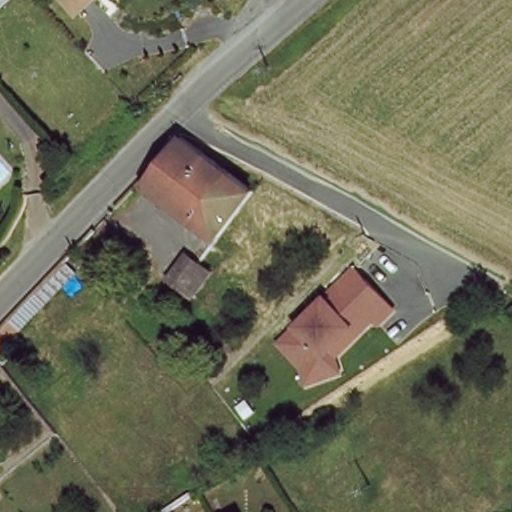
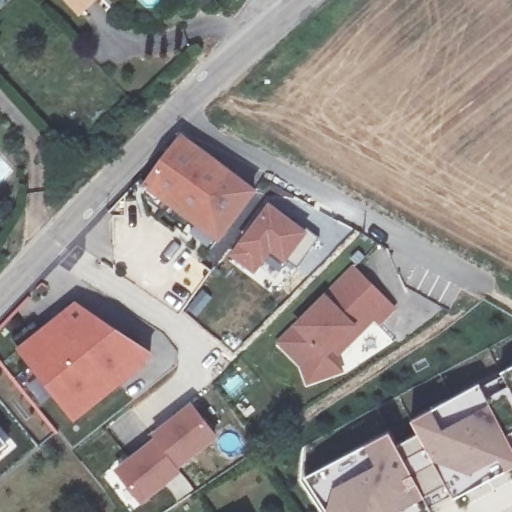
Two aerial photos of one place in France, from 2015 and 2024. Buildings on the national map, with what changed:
unchanged [(73,0),(95,0),(84,11),(73,0)]
unchanged [(223,237),(194,217),(137,178),(175,136),(206,156),(227,171),(256,190),(223,237)]
new [(267,200),(318,237),(297,265),(288,259),(283,264),(271,254),(253,276),(227,255),(267,200)]
demolished [(191,293),(183,287),(169,277),(185,254),(199,264),(208,270),(191,293)]
unchanged [(343,367),(335,370),(310,378),(305,362),(282,340),(354,265),(389,298),(395,303),(380,318),(375,313),(337,353),(343,367)]
new [(76,421),(18,348),(77,301),(154,352),(149,363),(76,421)]
new [(367,445),(391,433),(398,446),(419,435),(411,420),(481,385),(488,396),(510,385),(503,372),(512,367),(512,467),(430,512),(327,512),(305,478),(367,445)]
new [(191,400),(219,436),(180,469),(152,436),(150,433),(191,400)]
new [(0,457),(0,429),(15,445),(0,457)]
new [(152,436),(180,469),(195,488),(178,501),(166,486),(142,504),(113,469),(152,436)]

